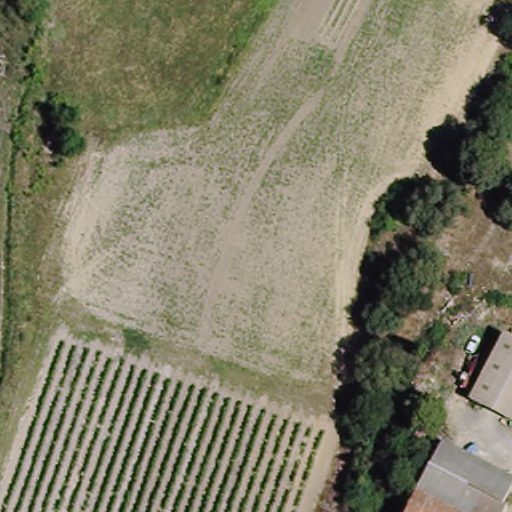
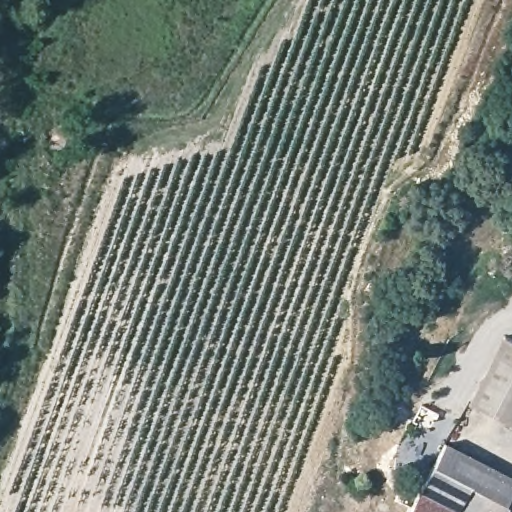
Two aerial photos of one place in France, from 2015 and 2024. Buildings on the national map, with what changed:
unchanged [(505,335),(512,338),(512,423),(470,401),(505,335)]
unchanged [(512,481),(512,489),(503,507),(470,490),(457,512),(449,512),(416,495),(442,446),(512,481)]
unchanged [(503,507),(506,508),(504,512),(457,512),(470,490),(503,507)]
unchanged [(408,512),(416,495),(449,512),(408,512)]

